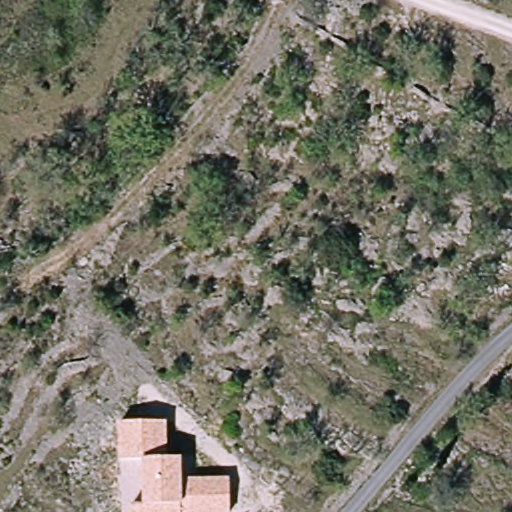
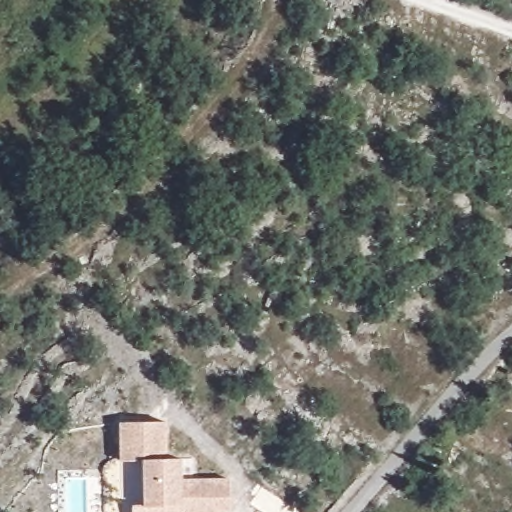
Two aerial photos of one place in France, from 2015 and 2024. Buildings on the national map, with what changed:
unchanged [(169,459),(181,459),(181,480),(230,478),(230,512),(132,512),(132,505),(143,506),(143,460),(120,461),(118,422),(168,421),(169,459)]

